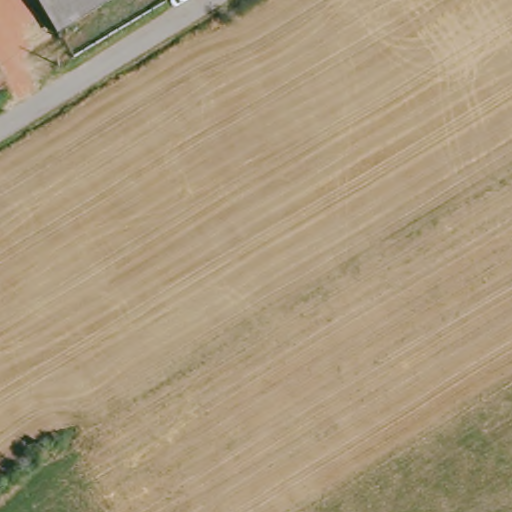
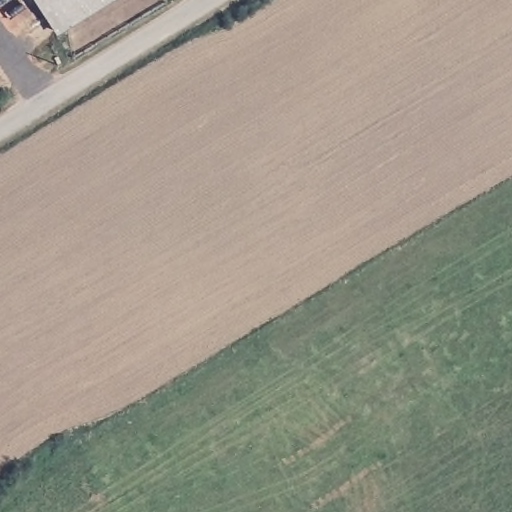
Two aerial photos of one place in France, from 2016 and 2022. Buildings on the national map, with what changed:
unchanged [(40,0),(118,0),(63,35),(40,0)]

